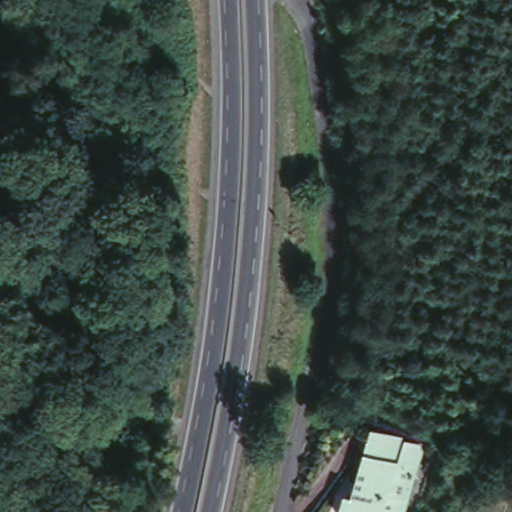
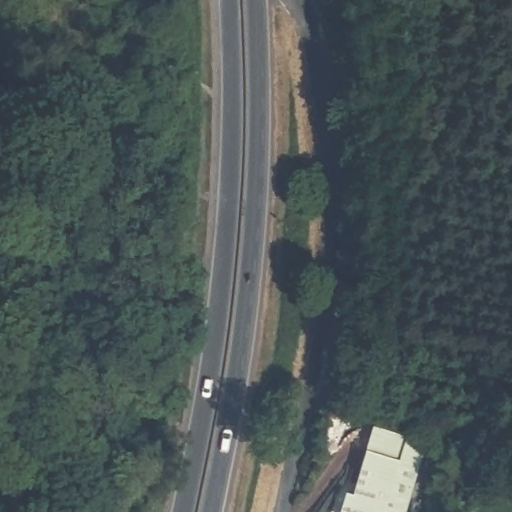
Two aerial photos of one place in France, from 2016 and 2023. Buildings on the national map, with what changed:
unchanged [(346,493),(372,426),(401,437),(400,441),(420,448),(416,460),(415,460),(395,510),(401,512),(331,512),(340,491),(346,493)]

